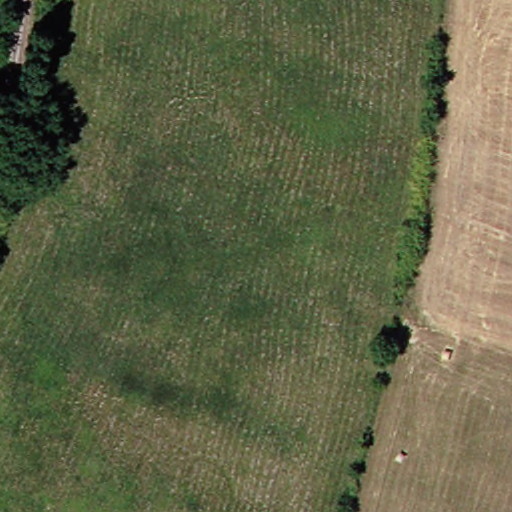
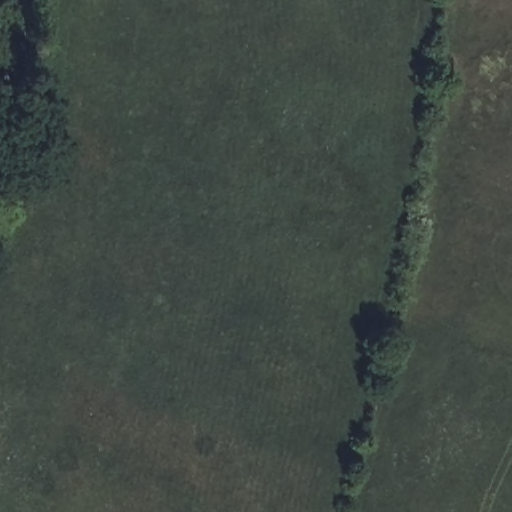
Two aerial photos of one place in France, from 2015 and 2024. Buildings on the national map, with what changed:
[]

